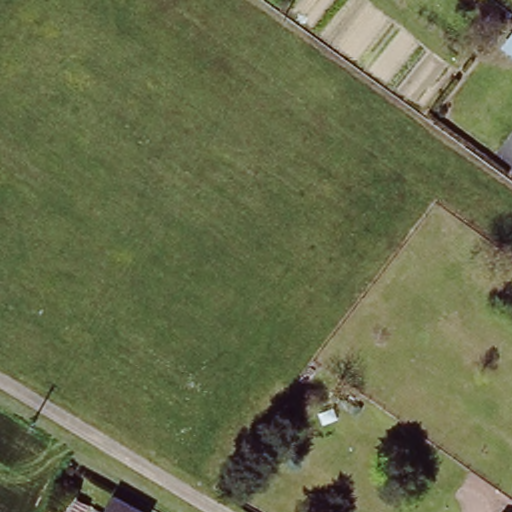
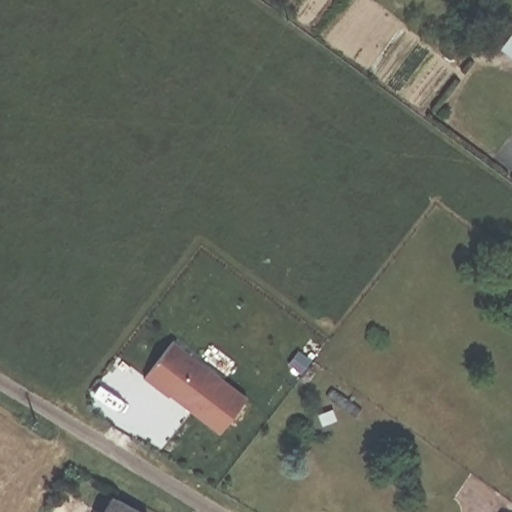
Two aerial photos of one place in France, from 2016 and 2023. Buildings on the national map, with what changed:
unchanged [(503,51),(492,65),(480,56),(504,24),(512,30),(512,57),(503,51)]
new [(220,434),(145,376),(174,340),(248,395),(220,434)]
unchanged [(138,512),(108,512),(116,498),(138,512)]

